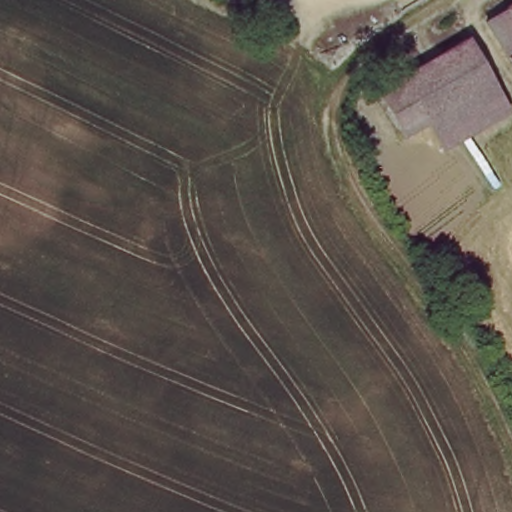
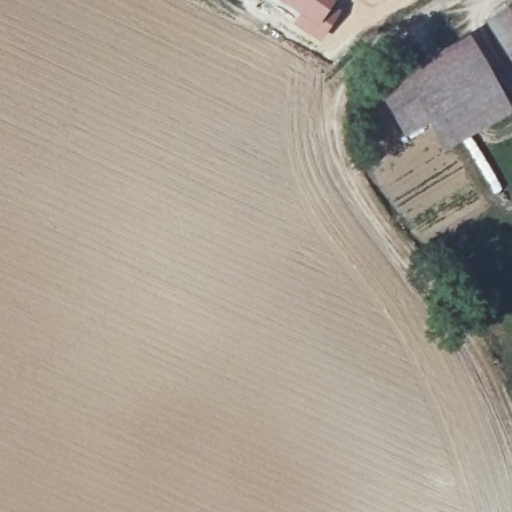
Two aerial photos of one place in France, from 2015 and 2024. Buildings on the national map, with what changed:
new [(320,43),(291,24),(297,15),(274,0),(336,0),(334,3),(342,9),(320,43)]
unchanged [(490,17),(512,3),(512,49),(494,23),(490,17)]
unchanged [(470,37),(490,71),(499,86),(434,124),(404,76),(470,37)]

